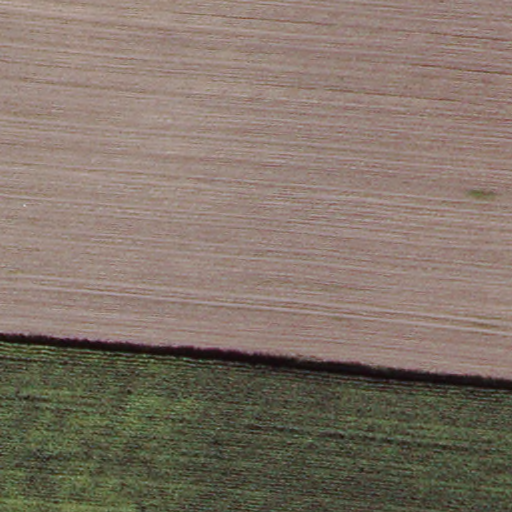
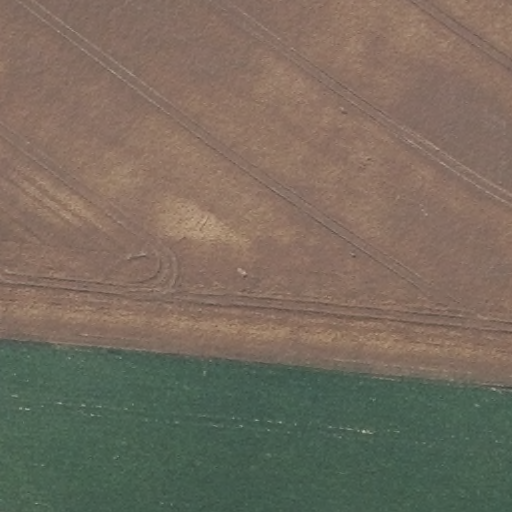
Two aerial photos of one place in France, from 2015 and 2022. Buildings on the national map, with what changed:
[]

